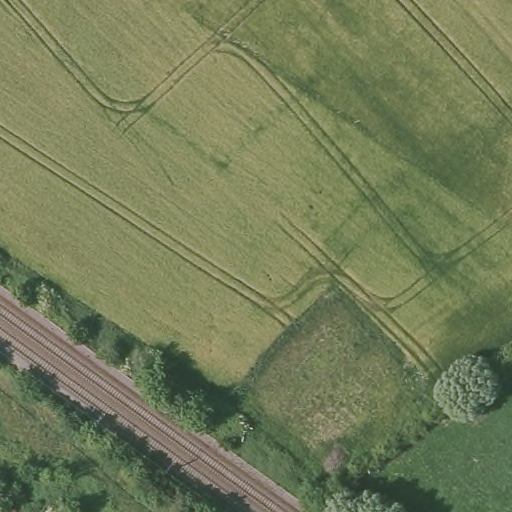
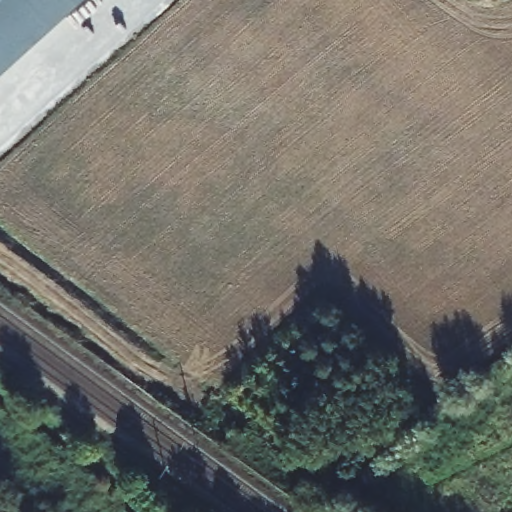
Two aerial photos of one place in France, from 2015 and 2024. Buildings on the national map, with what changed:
new [(0,71),(0,0),(79,0),(0,71)]

